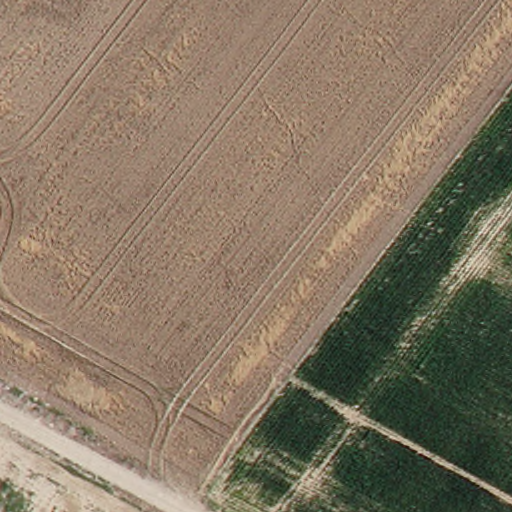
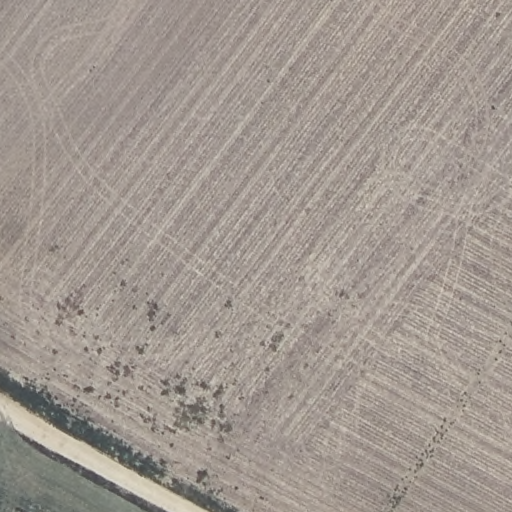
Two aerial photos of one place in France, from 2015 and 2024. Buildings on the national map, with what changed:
[]

